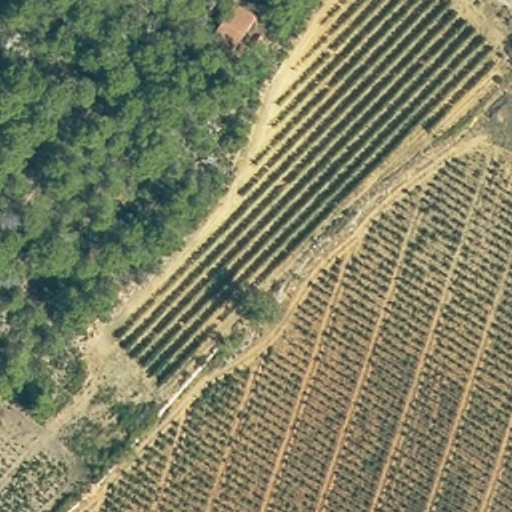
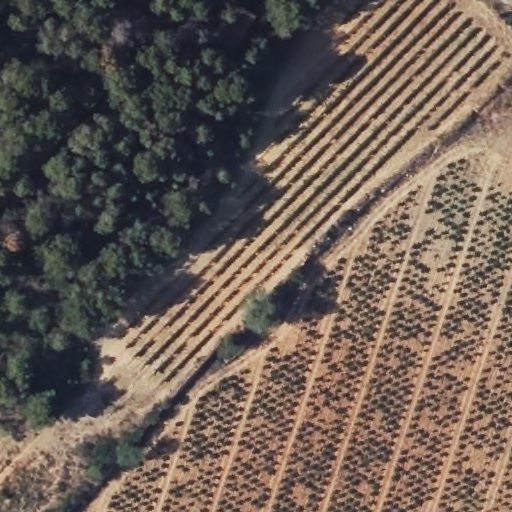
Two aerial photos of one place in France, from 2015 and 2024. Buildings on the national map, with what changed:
unchanged [(230,0),(234,0),(255,12),(233,49),(210,34),(230,0)]

